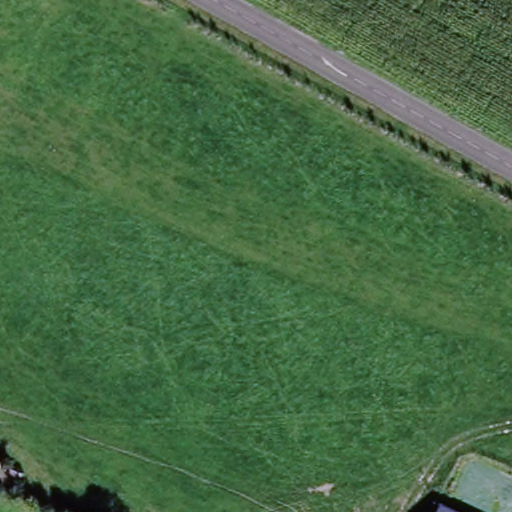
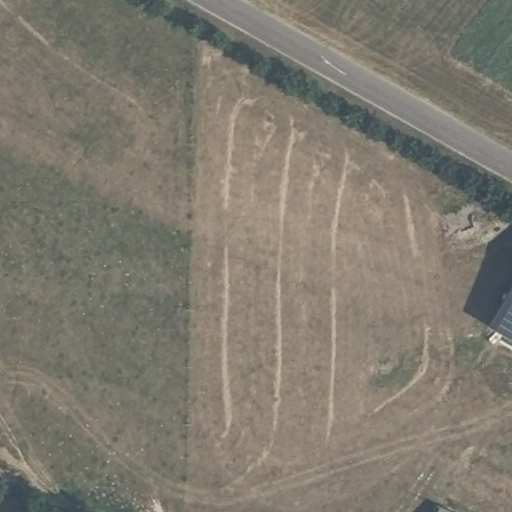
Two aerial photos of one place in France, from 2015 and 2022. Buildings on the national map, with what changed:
new [(512,280),(512,335),(489,321),(512,280)]
unchanged [(451,512),(441,512),(442,508),(451,512)]

